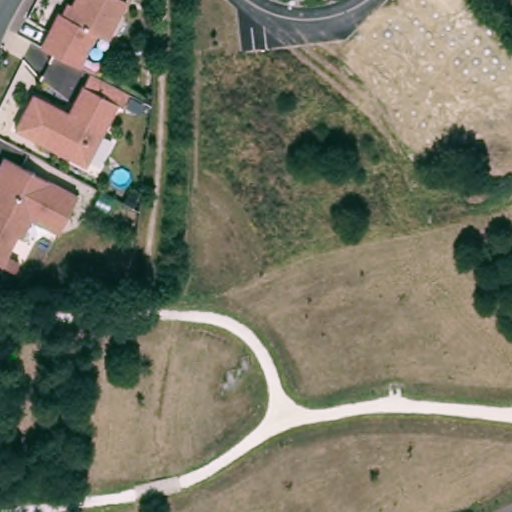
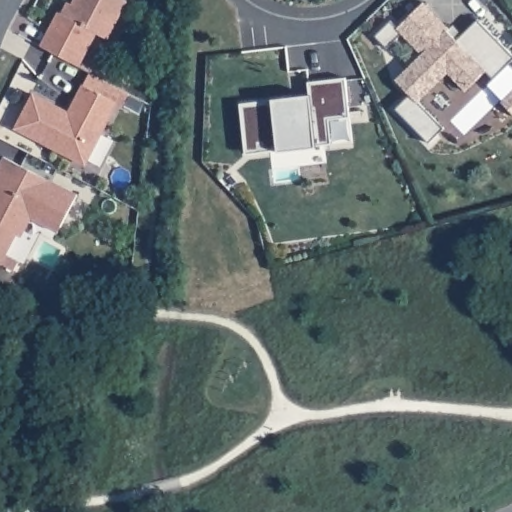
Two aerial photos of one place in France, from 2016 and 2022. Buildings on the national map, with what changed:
unchanged [(84,62),(46,42),(64,7),(66,9),(71,0),(130,0),(112,34),(102,29),(84,62)]
new [(421,0),(429,0),(450,23),(454,20),(463,29),(478,14),(512,47),(512,62),(498,77),(490,69),(471,89),(453,71),(424,101),(450,126),(435,142),(401,107),(415,93),(401,79),(427,52),(406,32),(391,47),(374,30),(392,14),(399,21),(421,0)]
unchanged [(91,67),(112,79),(130,88),(123,102),(117,99),(85,160),(17,124),(34,90),(70,108),(74,100),(84,81),(91,67)]
new [(252,155),(245,107),(315,99),(313,81),(350,76),(355,114),(356,117),(334,120),(337,144),(331,145),(265,152),(252,155)]
new [(512,95),(512,105),(507,100),(512,95)]
unchanged [(0,258),(0,162),(5,152),(78,191),(61,222),(58,228),(51,225),(38,217),(22,235),(16,232),(7,251),(20,257),(15,267),(2,260),(0,258)]

